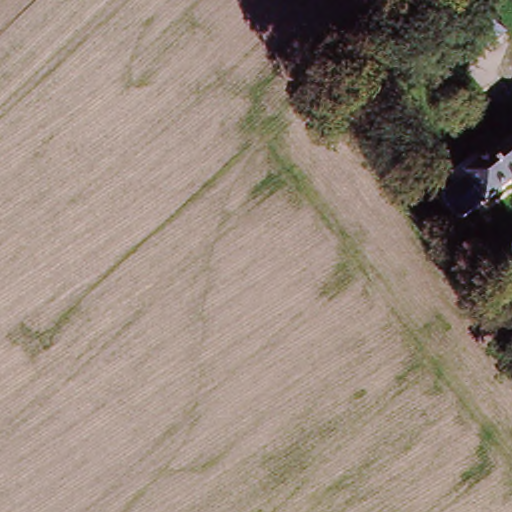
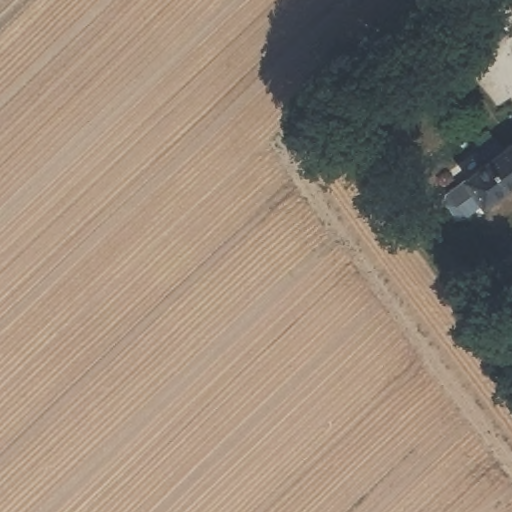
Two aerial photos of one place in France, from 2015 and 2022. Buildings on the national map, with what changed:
unchanged [(464,36),(491,11),(512,35),(512,37),(486,61),(464,36)]
unchanged [(445,198),(465,182),(485,166),(478,157),(494,142),(501,150),(512,140),(512,186),(487,207),(485,206),(466,222),(457,221),(445,206),(445,198)]

